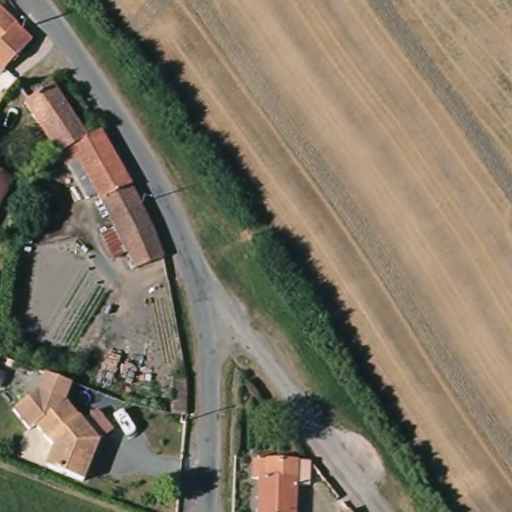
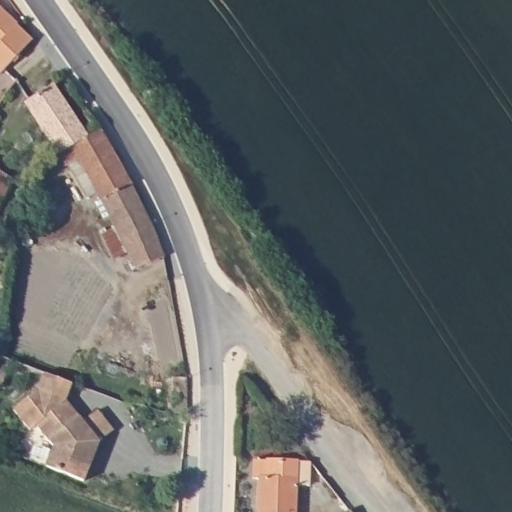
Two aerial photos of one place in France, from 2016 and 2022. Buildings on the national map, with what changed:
unchanged [(17,24),(32,37),(17,57),(4,73),(0,69),(0,6),(18,22),(17,24)]
unchanged [(61,152),(30,98),(56,83),(88,137),(61,152)]
unchanged [(100,241),(113,234),(96,199),(84,206),(66,171),(65,172),(56,157),(60,153),(61,152),(88,137),(102,129),(102,130),(118,155),(127,172),(135,187),(147,216),(148,217),(159,248),(164,262),(135,273),(125,257),(112,264),(100,241)]
unchanged [(0,191),(0,173),(8,177),(0,191)]
unchanged [(44,421),(60,443),(51,463),(46,462),(53,445),(39,423),(31,430),(14,410),(40,389),(44,370),(75,381),(68,400),(44,421)]
unchanged [(170,412),(170,405),(176,405),(178,377),(191,378),(190,416),(170,412)]
unchanged [(51,463),(60,443),(44,421),(68,400),(86,419),(100,408),(119,430),(103,440),(89,478),(51,463)]
unchanged [(256,482),(256,467),(299,468),(311,468),(311,490),(299,491),(298,512),(262,512),(263,482),(256,482)]
unchanged [(349,512),(351,510),(353,512),(349,512)]

